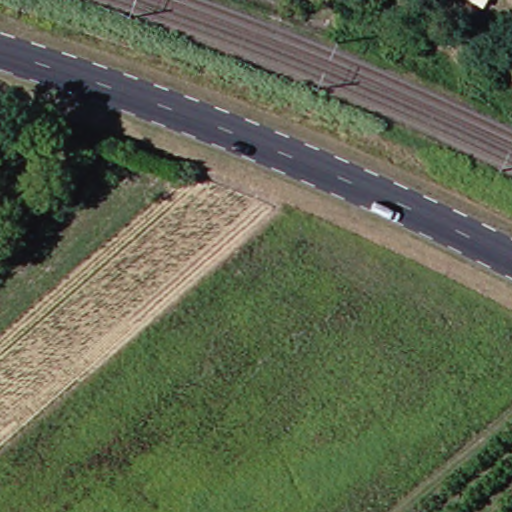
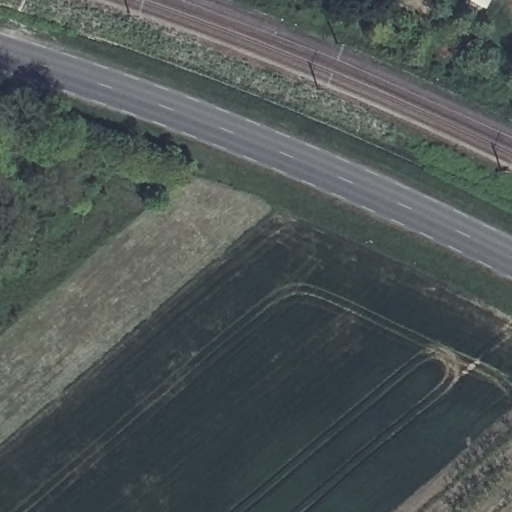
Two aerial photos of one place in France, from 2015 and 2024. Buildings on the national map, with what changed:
unchanged [(470,7),(475,0),(497,0),(485,16),(470,7)]

